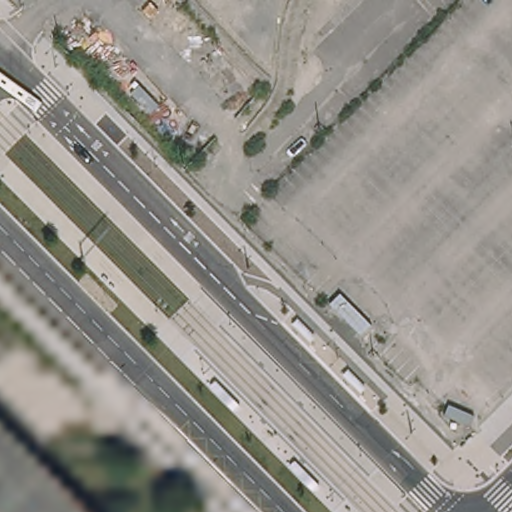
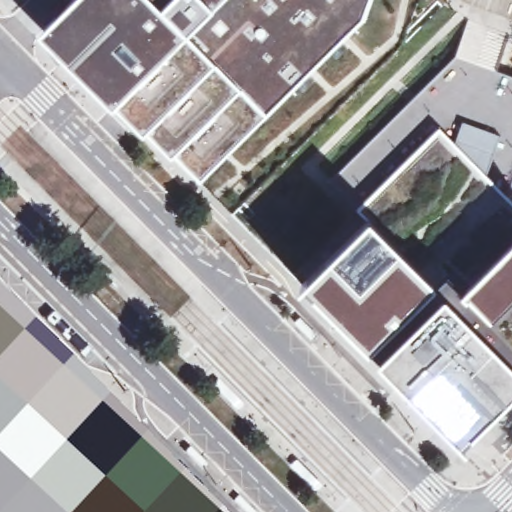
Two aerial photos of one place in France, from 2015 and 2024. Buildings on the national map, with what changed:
new [(176,154),(172,157),(147,130),(143,135),(115,104),(110,110),(37,38),(75,0),(369,0),(362,19),(201,180),(176,154)]
new [(462,292),(444,274),(434,285),(368,218),(359,209),(331,180),(454,57),(512,78),(512,177),(505,196),(512,203),(512,241),(462,292)]
new [(444,274),(462,292),(512,241),(512,390),(459,443),(376,360),(369,352),(302,285),(368,218),(434,285),(444,274)]
unchanged [(0,511),(0,421),(91,512),(1,512),(0,511)]

